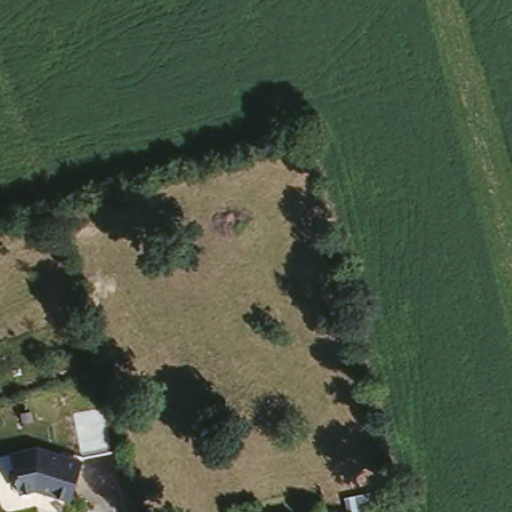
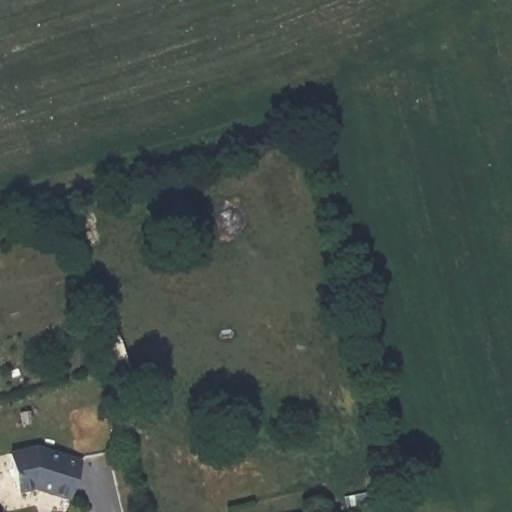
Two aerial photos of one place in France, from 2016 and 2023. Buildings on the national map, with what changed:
unchanged [(35,488),(18,493),(6,453),(36,443),(82,460),(67,500),(35,488)]

